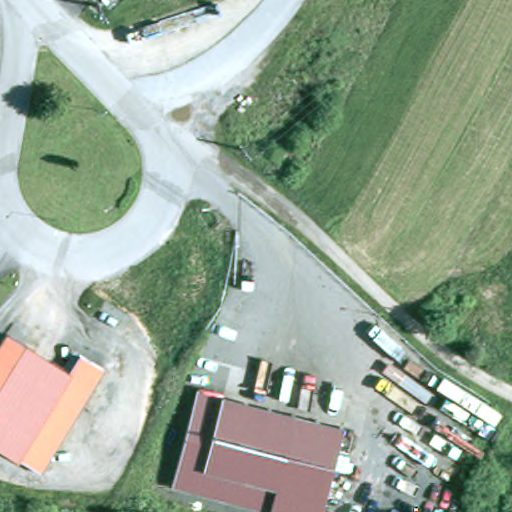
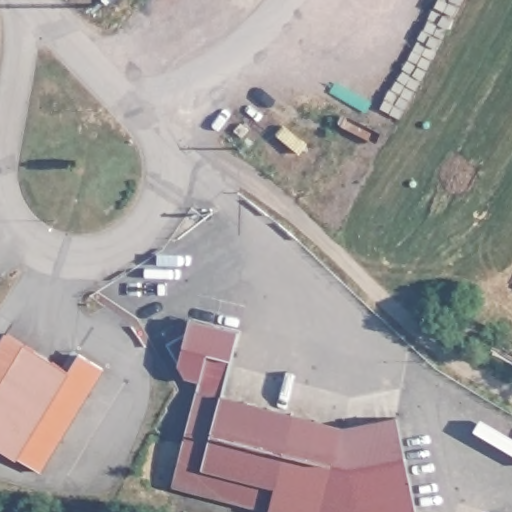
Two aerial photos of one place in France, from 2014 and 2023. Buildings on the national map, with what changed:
new [(198,388),(201,379),(186,377),(178,363),(167,343),(163,333),(188,317),(238,328),(232,358),(223,394),(198,388)]
unchanged [(25,345),(0,386),(0,345),(6,334),(25,345)]
unchanged [(80,354),(103,368),(40,472),(0,448),(0,386),(25,345),(62,368),(72,350),(80,354)]
unchanged [(340,423),(317,512),(283,512),(175,484),(198,388),(340,423)]
new [(398,416),(418,512),(317,512),(340,423),(398,416)]

